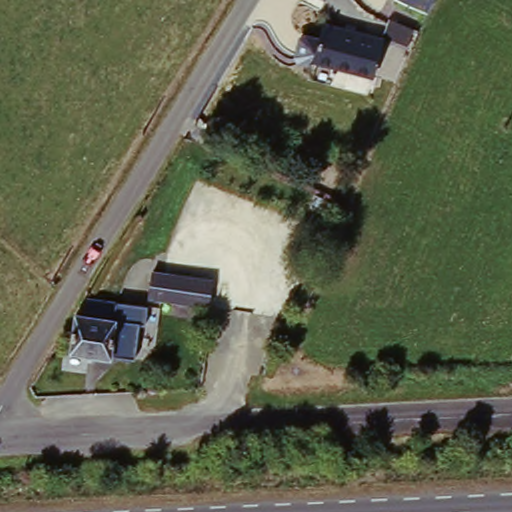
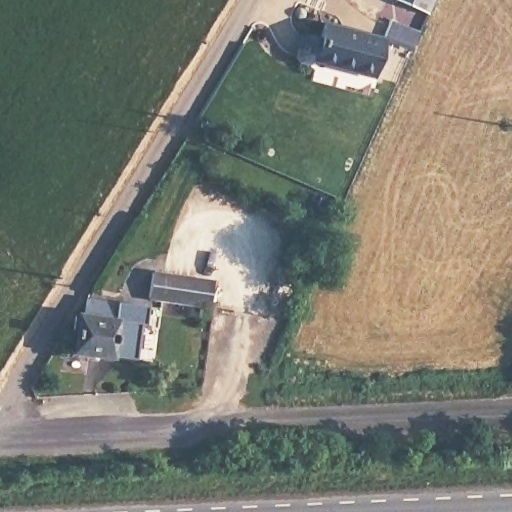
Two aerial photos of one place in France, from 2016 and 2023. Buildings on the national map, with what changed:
unchanged [(397,0),(436,0),(429,15),(396,2),(397,0)]
unchanged [(396,20),(418,30),(412,45),(390,35),(396,20)]
unchanged [(389,37),(380,76),(321,63),(315,66),(305,64),(302,59),(306,40),(312,37),(326,40),(329,24),(389,37)]
unchanged [(348,179),(341,193),(327,187),(333,172),(348,179)]
unchanged [(215,279),(210,310),(147,302),(152,271),(215,279)]
unchanged [(125,306),(121,344),(110,343),(107,361),(70,357),(73,320),(79,320),(83,303),(125,306)]

